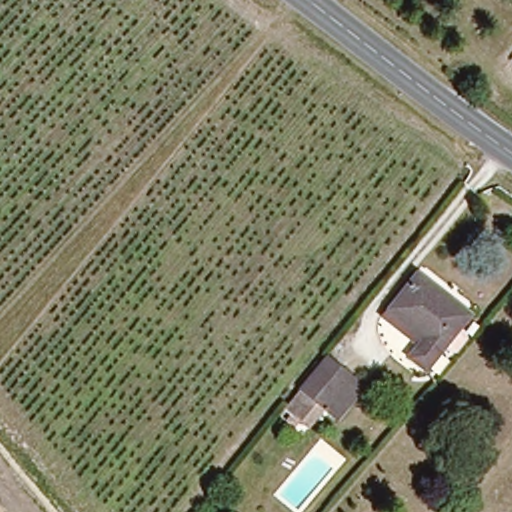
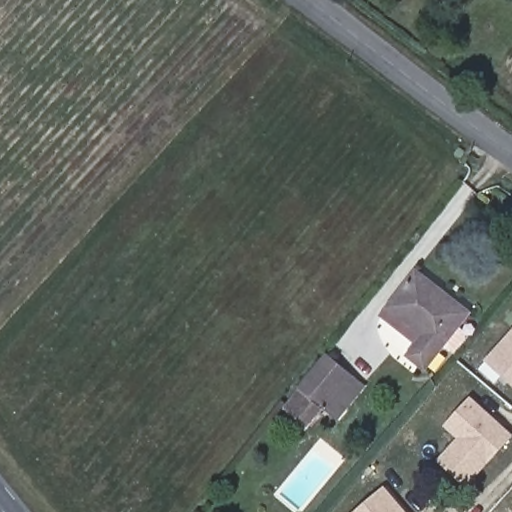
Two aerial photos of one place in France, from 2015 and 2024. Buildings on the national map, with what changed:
unchanged [(467,309),(425,364),(408,351),(424,330),(389,303),(396,294),(415,269),(467,309)]
new [(512,386),(486,364),(512,335),(512,386)]
unchanged [(336,420),(323,409),(307,397),(300,391),(329,356),(336,362),(352,376),(365,386),(336,420)]
new [(470,400),(511,437),(466,488),(439,463),(459,440),(445,428),(470,400)]
new [(385,488),(407,512),(358,512),(385,488)]

